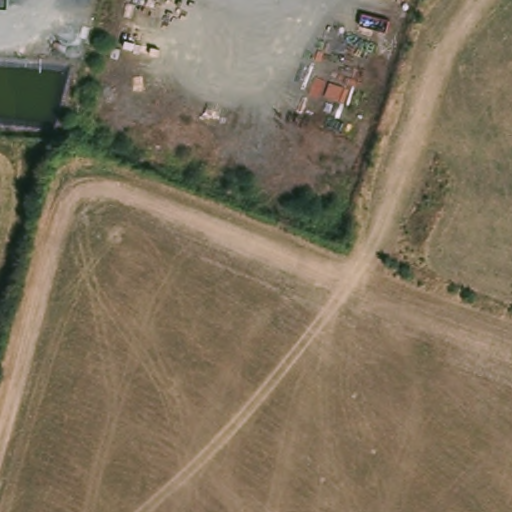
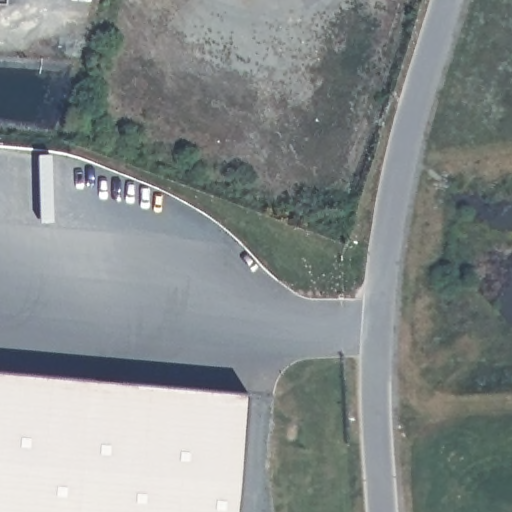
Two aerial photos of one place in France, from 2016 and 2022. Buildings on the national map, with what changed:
unchanged [(0,2),(0,0),(1,0),(1,2),(0,2)]
new [(234,512),(0,512),(0,371),(244,392),(234,512)]

